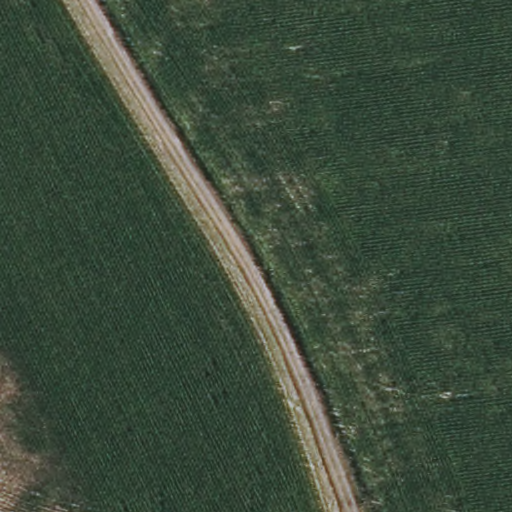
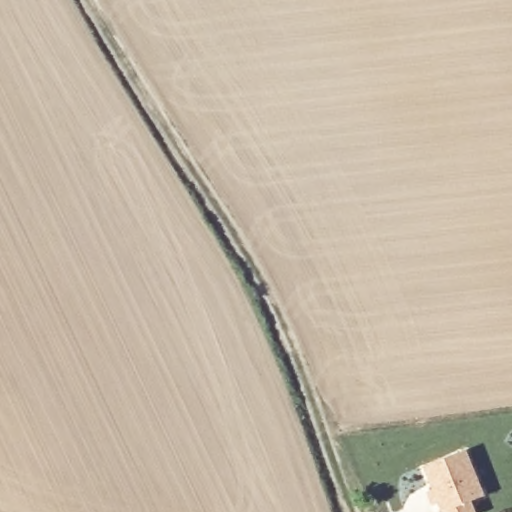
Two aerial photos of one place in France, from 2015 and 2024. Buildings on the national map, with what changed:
new [(462,453),(480,497),(466,502),(470,512),(440,512),(423,469),(462,453)]

